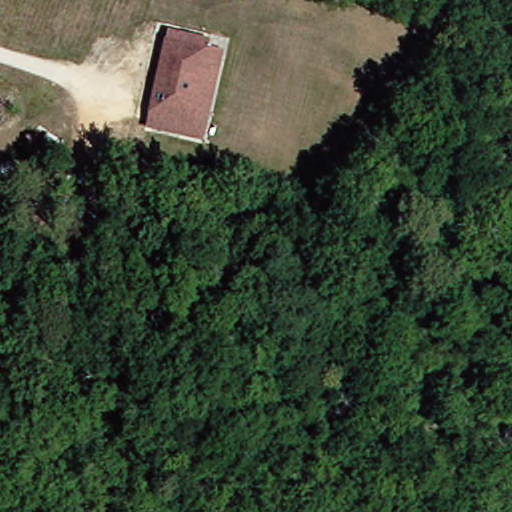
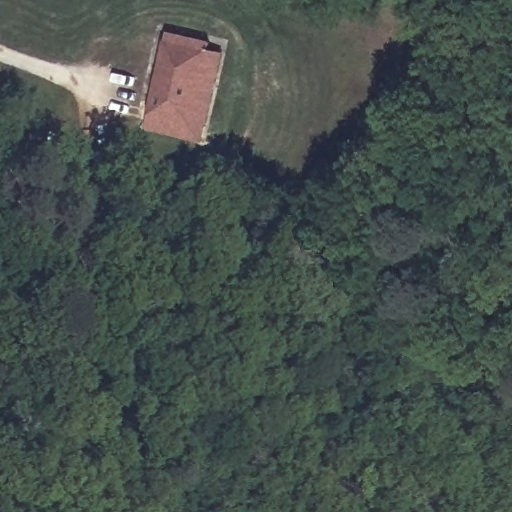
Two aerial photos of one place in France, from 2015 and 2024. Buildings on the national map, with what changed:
unchanged [(212,49),(210,55),(185,127),(144,114),(171,35),(212,49)]
unchanged [(224,59),(195,145),(140,127),(144,114),(185,127),(210,55),(224,59)]

